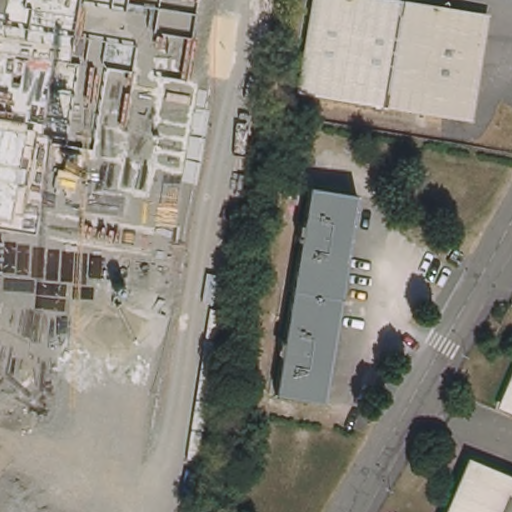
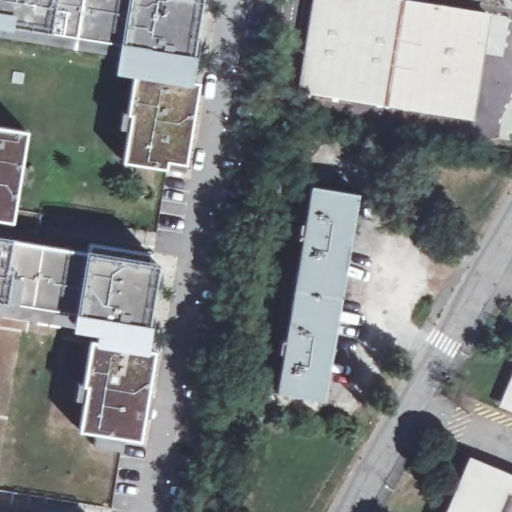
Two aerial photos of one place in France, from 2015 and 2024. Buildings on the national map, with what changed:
new [(195,55),(191,82),(200,82),(186,165),(167,162),(166,169),(124,163),(131,115),(128,115),(129,75),(114,74),(120,43),(108,41),(75,35),(49,33),(10,28),(0,27),(0,0),(200,0),(195,55)]
unchanged [(305,93),(320,0),(405,0),(487,14),(470,120),(305,93)]
new [(28,132),(13,224),(0,222),(0,127),(28,132)]
unchanged [(288,337),(304,241),(298,240),(299,233),(305,234),(313,185),(361,193),(354,233),(358,234),(356,247),(352,246),(335,348),(339,350),(336,364),(332,363),(326,401),(278,393),(286,345),(280,344),(281,336),(288,337)]
new [(85,387),(83,386),(90,342),(95,344),(96,333),(72,330),(74,313),(64,312),(31,307),(5,303),(0,303),(0,239),(12,241),(40,245),(74,251),(86,252),(89,245),(150,254),(145,263),(158,265),(151,325),(147,351),(156,351),(140,441),(78,432),(85,387)]
unchanged [(512,386),(512,406),(505,403),(512,386)]
unchanged [(512,474),(512,512),(447,512),(471,456),(512,474)]

